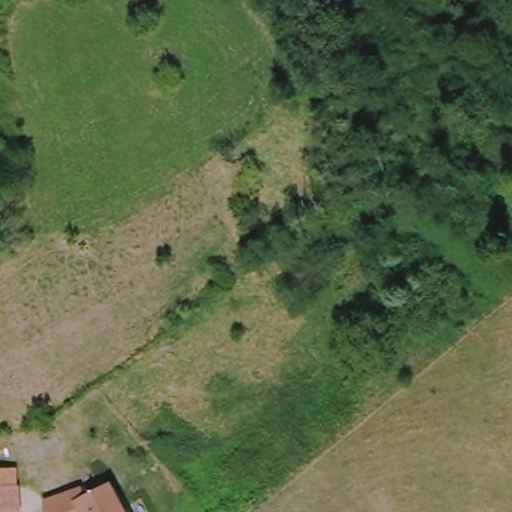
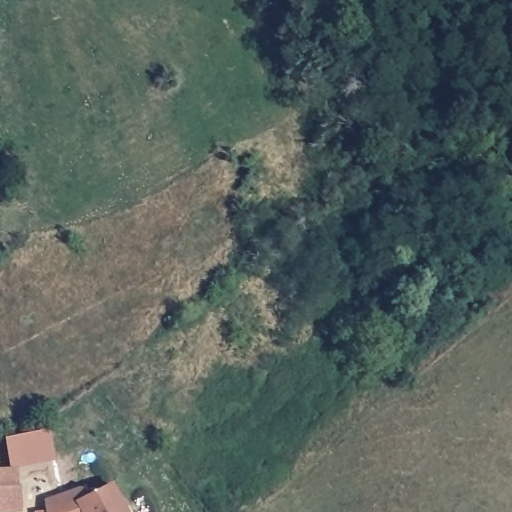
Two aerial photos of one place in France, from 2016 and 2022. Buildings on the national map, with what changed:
new [(15,468),(9,470),(4,438),(47,430),(53,460),(15,468)]
unchanged [(16,486),(17,511),(0,512),(0,471),(15,470),(16,486)]
unchanged [(86,490),(89,499),(116,486),(128,512),(49,512),(48,504),(86,490)]

